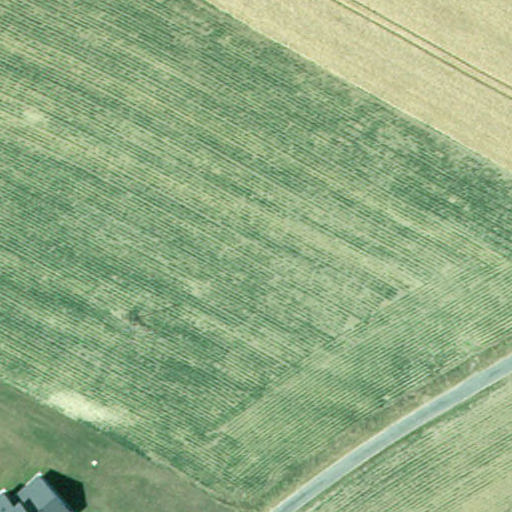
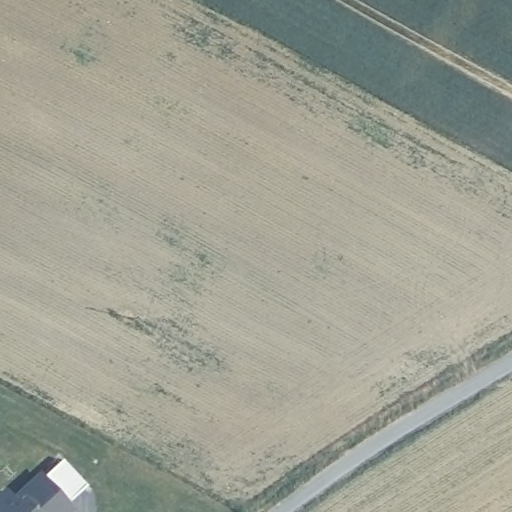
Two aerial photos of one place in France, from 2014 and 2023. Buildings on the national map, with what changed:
unchanged [(2,489),(10,498),(42,470),(72,508),(68,512),(0,512),(0,491),(2,489)]

